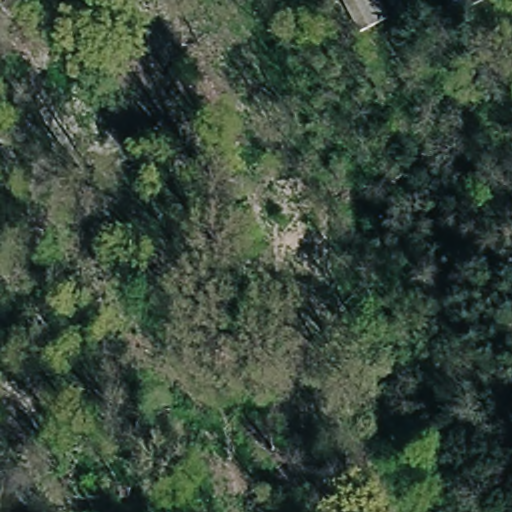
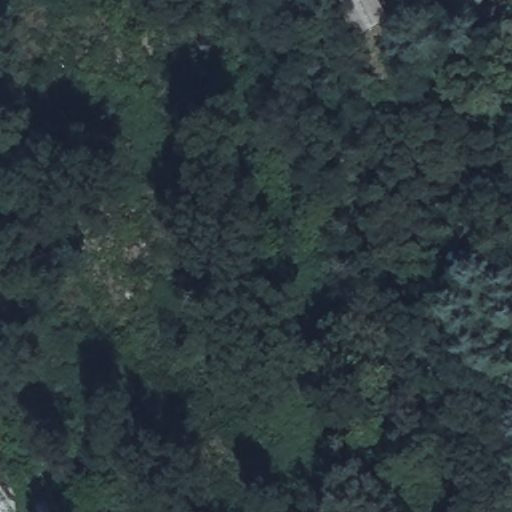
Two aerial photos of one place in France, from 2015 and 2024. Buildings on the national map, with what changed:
unchanged [(381,0),(390,18),(362,32),(345,0),(381,0)]
unchanged [(446,0),(477,0),(453,13),(446,0)]

